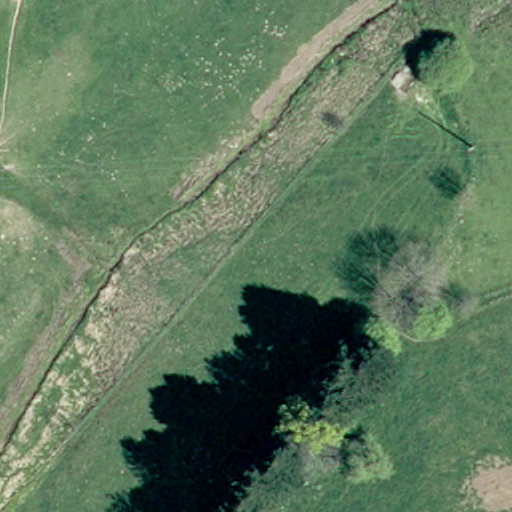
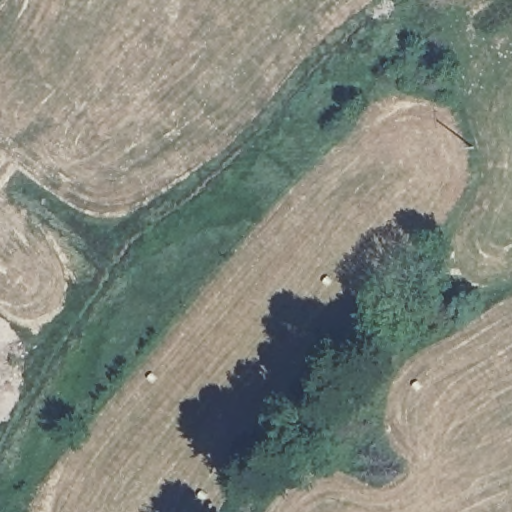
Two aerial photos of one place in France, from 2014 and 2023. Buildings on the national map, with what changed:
[]

